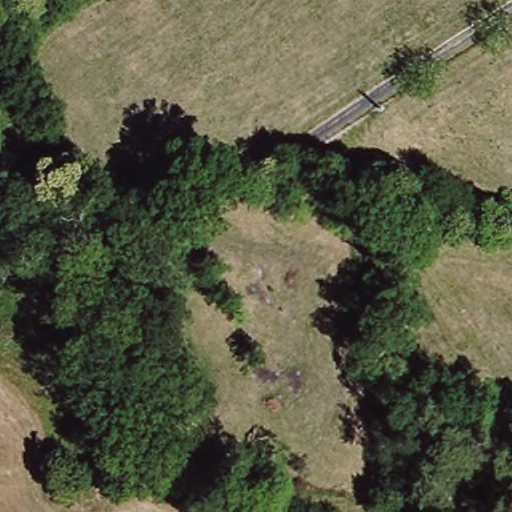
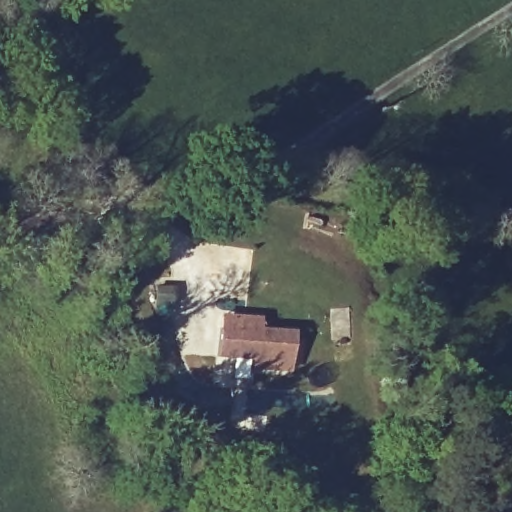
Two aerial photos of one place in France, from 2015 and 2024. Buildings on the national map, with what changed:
new [(222,314),(228,314),(258,316),(257,328),(290,331),(288,369),(252,366),(252,357),(218,354),(221,327),(222,314)]

